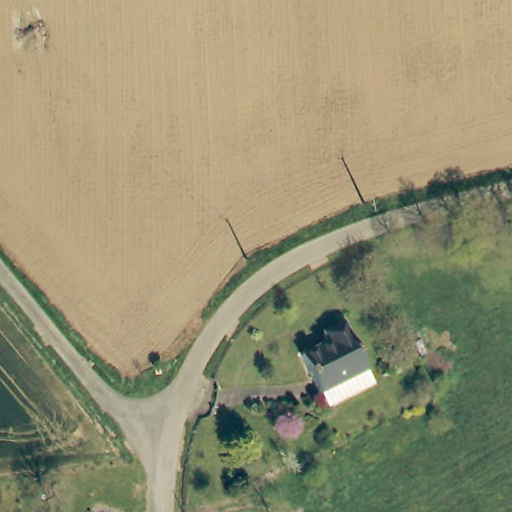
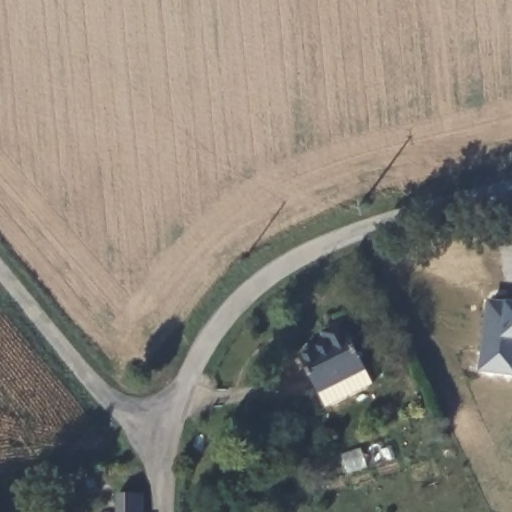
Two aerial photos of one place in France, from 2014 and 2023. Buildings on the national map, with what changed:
new [(512,305),(512,376),(483,374),(488,303),(512,305)]
unchanged [(365,371),(372,386),(325,409),(318,395),(300,357),(326,343),(320,333),(342,324),(365,371)]
new [(146,512),(114,512),(114,494),(147,493),(146,512)]

